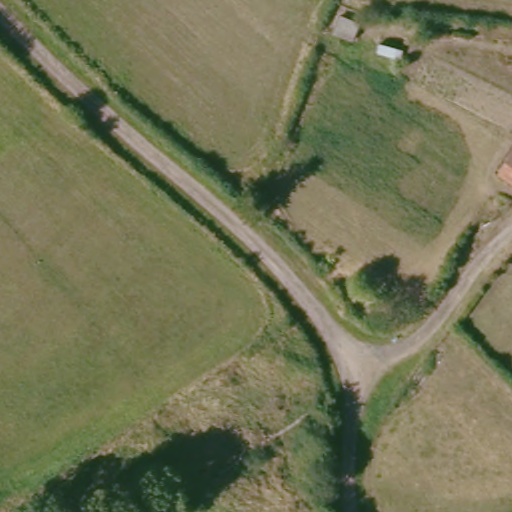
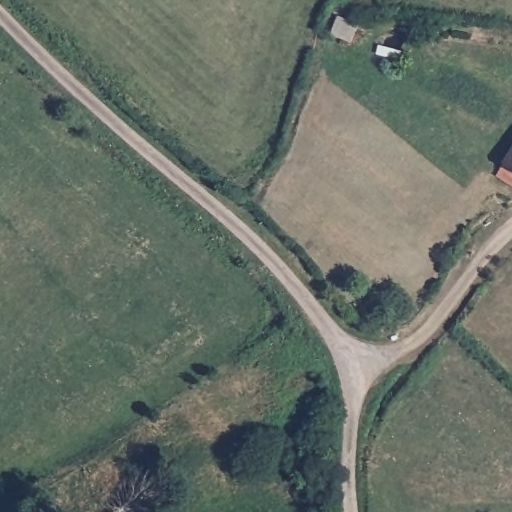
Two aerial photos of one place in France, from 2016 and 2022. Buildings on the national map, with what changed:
unchanged [(512,134),(512,188),(487,169),(512,134)]

